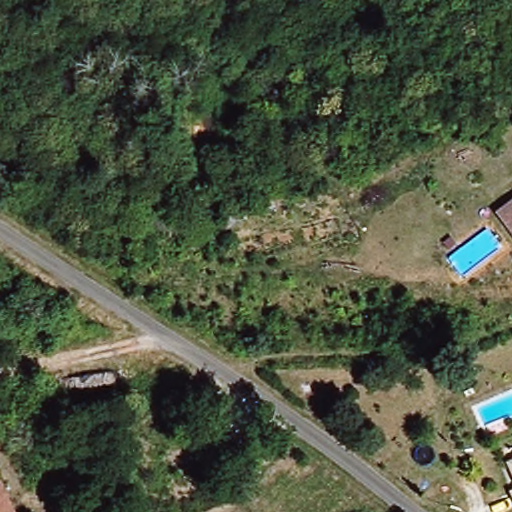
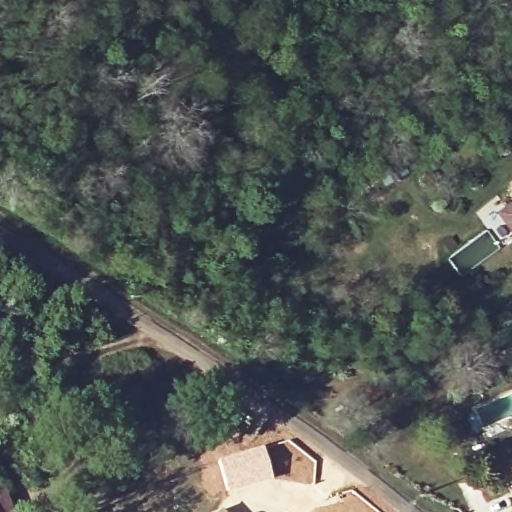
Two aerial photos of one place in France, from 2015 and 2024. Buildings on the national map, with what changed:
unchanged [(512,204),(512,228),(500,213),(512,204)]
new [(289,440),(316,461),(314,485),(286,481),(290,455),(287,454),(279,444),(278,444),(289,440)]
new [(265,446),(275,479),(227,494),(216,460),(265,446)]
unchanged [(512,458),(512,478),(505,461),(512,458)]
unchanged [(10,512),(0,512),(0,488),(10,512)]
new [(220,508),(224,512),(216,512),(220,508)]

